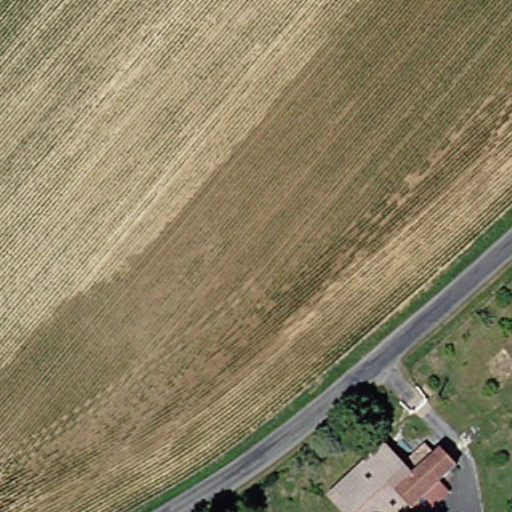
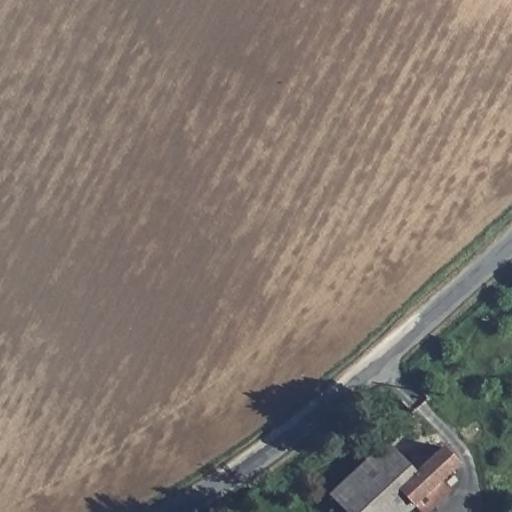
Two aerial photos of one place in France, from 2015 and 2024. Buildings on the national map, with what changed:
unchanged [(452,466),(406,512),(339,512),(324,498),(377,445),(410,476),(419,467),(410,457),(421,447),(430,457),(436,451),(452,466)]

